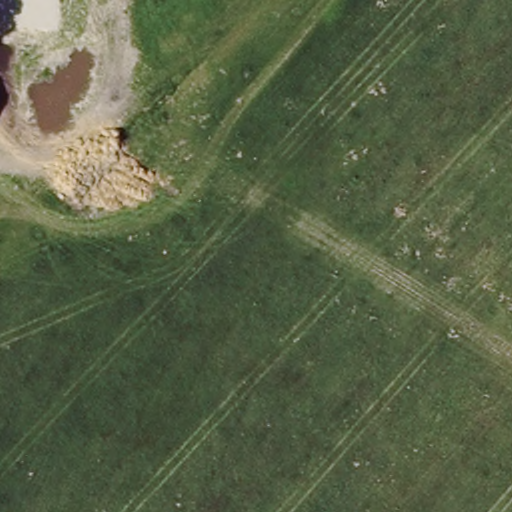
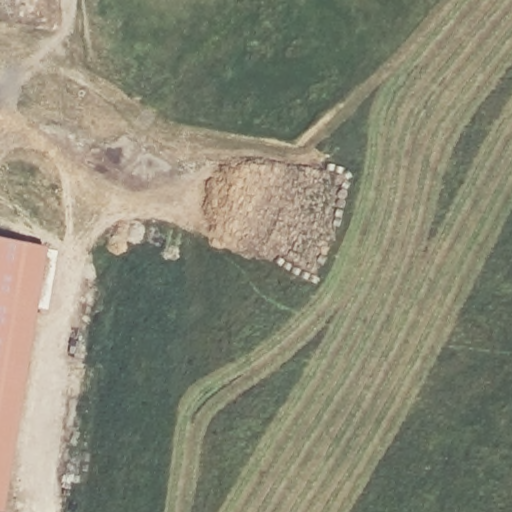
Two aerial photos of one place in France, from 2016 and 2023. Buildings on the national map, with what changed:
new [(49,249),(7,512),(0,512),(0,241),(49,249)]

